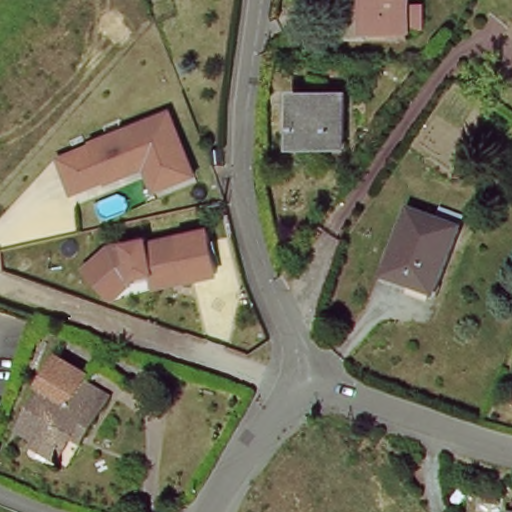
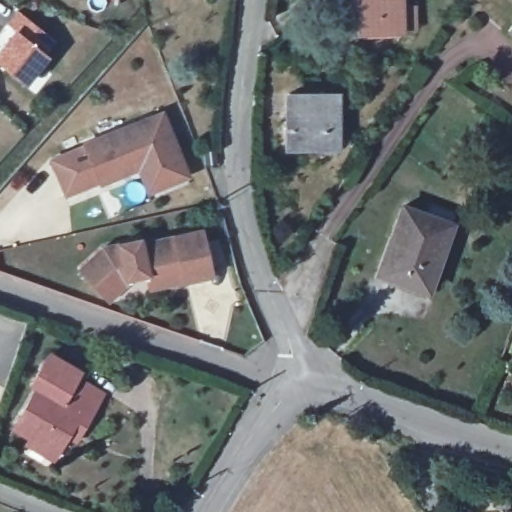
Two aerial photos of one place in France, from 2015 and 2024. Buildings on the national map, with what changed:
unchanged [(402,31),(402,32),(358,33),(357,0),(402,0),(402,5),(416,5),(417,31),(402,31)]
new [(16,41),(19,43),(26,34),(16,26),(26,13),(63,41),(45,64),(48,66),(33,86),(0,60),(16,41)]
unchanged [(507,31),(512,25),(512,35),(507,31)]
unchanged [(323,148),(289,148),(289,94),(337,94),(337,141),(337,148),(323,148)]
unchanged [(136,171),(101,187),(100,184),(65,200),(50,166),(83,151),(81,149),(138,125),(158,116),(163,128),(185,177),(159,189),(146,194),(136,171)]
unchanged [(458,212),(453,224),(428,215),(433,203),(458,212)]
unchanged [(405,283),(381,274),(394,240),(391,239),(403,207),(428,215),(453,225),(430,286),(428,292),(405,283)]
unchanged [(91,290),(75,275),(98,252),(135,242),(136,247),(196,232),(207,275),(181,282),(146,291),(145,286),(143,277),(121,292),(104,304),(91,290)]
unchanged [(85,381),(111,395),(86,440),(75,436),(61,462),(15,436),(36,396),(30,392),(55,347),(91,367),(85,381)]

